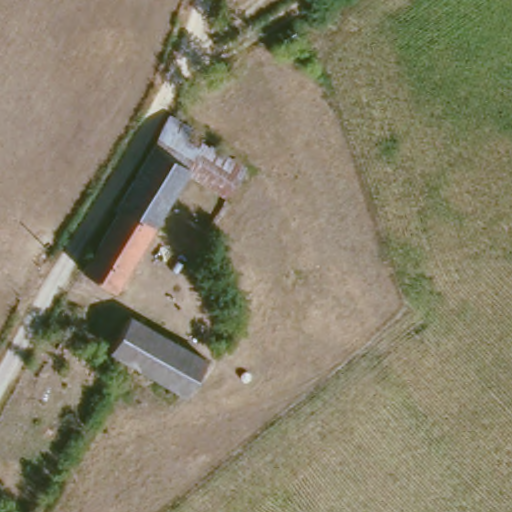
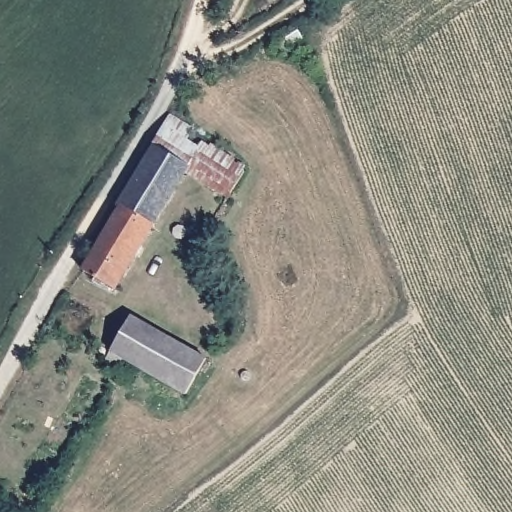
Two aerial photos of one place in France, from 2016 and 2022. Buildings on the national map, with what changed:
unchanged [(191,122),(182,133),(194,141),(201,135),(239,163),(224,190),(184,163),(117,277),(89,258),(122,202),(113,196),(171,106),(191,122)]
unchanged [(106,353),(127,316),(203,357),(182,395),(126,364),(106,353)]

